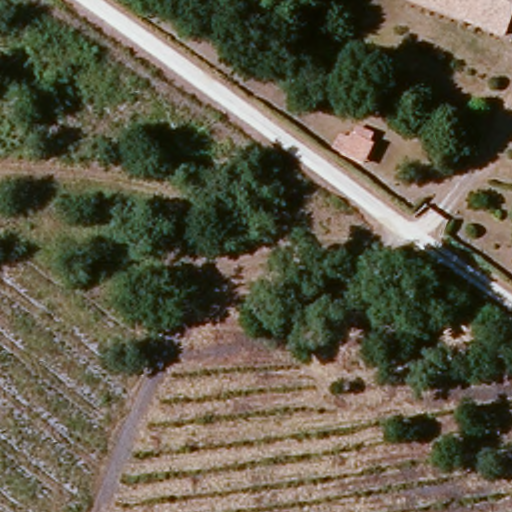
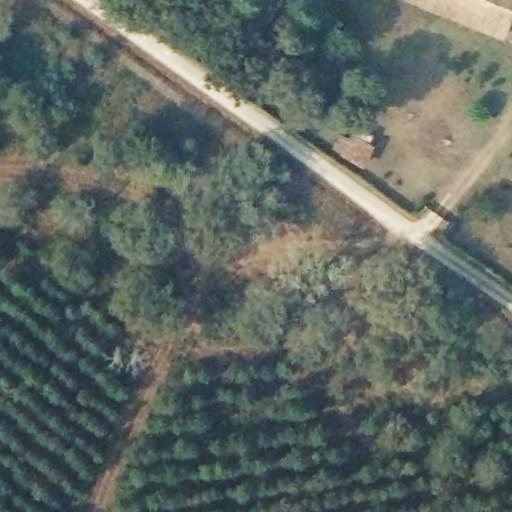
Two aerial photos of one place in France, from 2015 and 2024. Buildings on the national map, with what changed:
unchanged [(411,0),(512,0),(512,34),(510,39),(411,0)]

